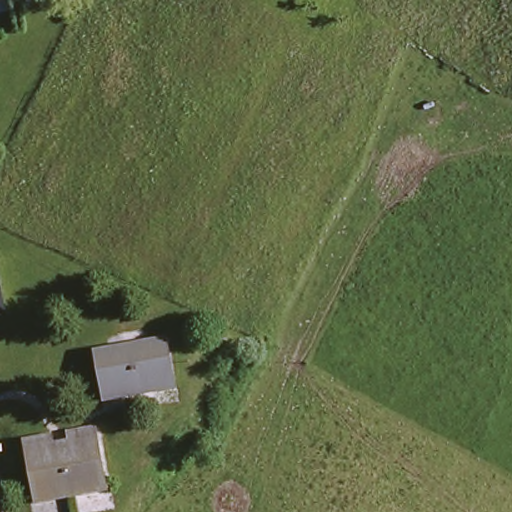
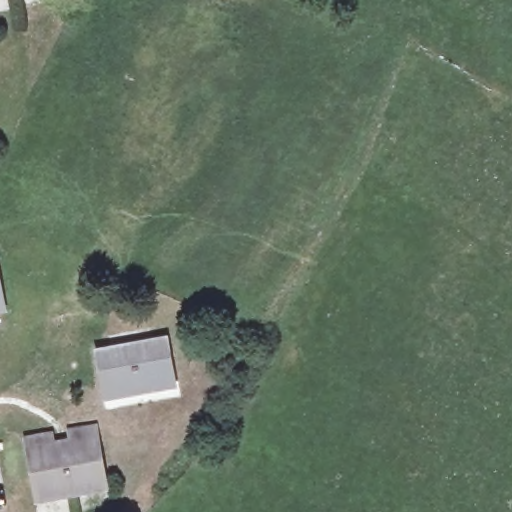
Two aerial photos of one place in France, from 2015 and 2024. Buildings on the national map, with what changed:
unchanged [(0,307),(0,266),(8,306),(0,307)]
unchanged [(173,335),(182,383),(108,398),(100,351),(173,335)]
unchanged [(54,430),(56,444),(77,439),(75,426),(97,421),(109,484),(40,498),(28,435),(54,430)]

